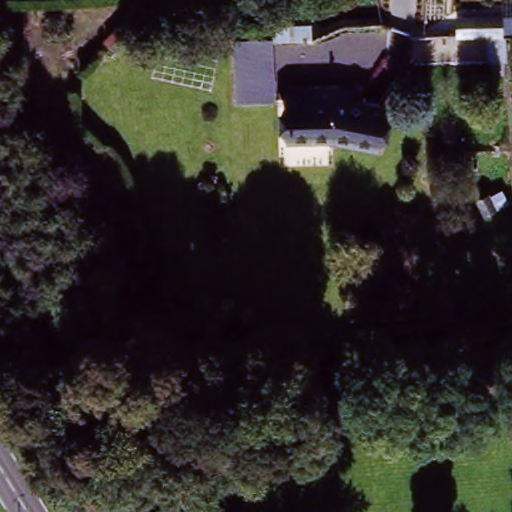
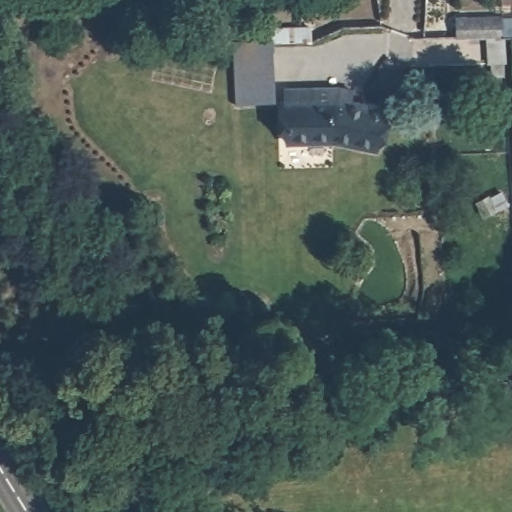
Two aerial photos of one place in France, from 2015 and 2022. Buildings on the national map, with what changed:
unchanged [(510,41),(509,67),(492,69),(487,39),(460,37),(457,16),(512,14),(512,40),(510,41)]
unchanged [(277,42),(277,101),(232,105),(231,43),(277,42)]
unchanged [(342,86),(357,88),(357,99),(386,107),(384,149),(340,142),(282,142),(288,89),(342,86)]

